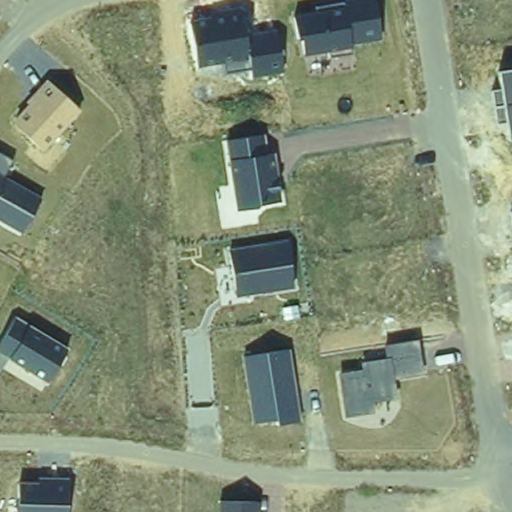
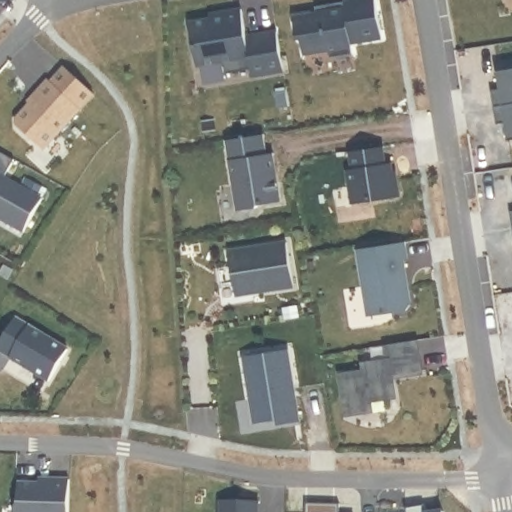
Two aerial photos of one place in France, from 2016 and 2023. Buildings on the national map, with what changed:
unchanged [(352,53),(329,57),(328,53),(304,57),(301,40),(295,41),(291,15),(364,0),(375,0),(382,38),(351,44),(352,53)]
unchanged [(252,79),(251,70),(227,74),(225,63),(196,68),(188,22),(240,11),(245,35),(276,30),(284,72),(252,79)]
unchanged [(506,122),(497,123),(492,91),(502,90),(498,72),(512,70),(512,140),(509,141),(506,122)]
unchanged [(43,150),(12,121),(28,104),(25,101),(47,79),(81,111),(43,150)]
unchanged [(236,211),(226,141),(264,135),(268,154),(274,153),(281,201),(236,211)]
new [(383,145),(385,163),(390,163),(393,178),(395,180),(397,193),(395,197),(351,202),(347,169),(354,169),(350,150),(383,145)]
unchanged [(22,233),(0,220),(0,154),(13,161),(5,176),(42,197),(22,233)]
unchanged [(512,211),(512,218),(511,212),(512,211)]
unchanged [(237,299),(227,251),(287,239),(295,287),(237,299)]
new [(403,240),(406,258),(402,258),(409,305),(406,310),(368,315),(358,247),(403,240)]
unchanged [(47,383),(0,352),(0,340),(13,316),(67,349),(47,383)]
unchanged [(393,379),(395,399),(371,402),(373,413),(345,417),(338,374),(362,370),(360,363),(385,359),(384,347),(418,341),(424,373),(393,379)]
unchanged [(277,426),(276,420),(254,424),(243,357),(290,350),(302,419),(277,426)]
unchanged [(69,512),(17,512),(18,481),(68,481),(69,512)]
unchanged [(219,502),(257,502),(257,512),(219,512),(219,502)]

